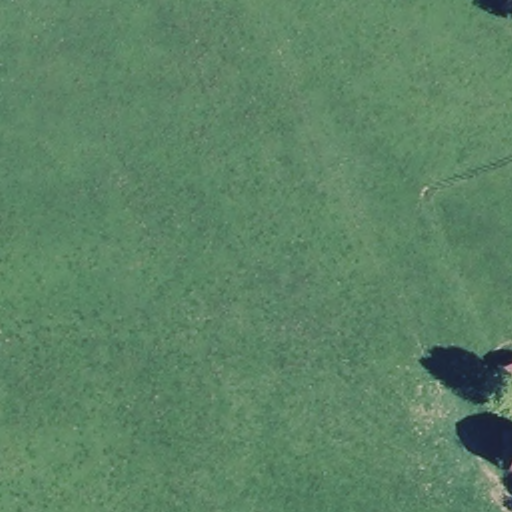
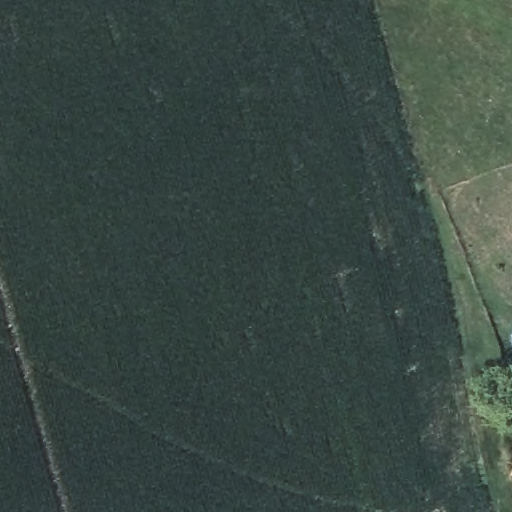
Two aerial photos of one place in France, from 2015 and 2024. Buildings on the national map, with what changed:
unchanged [(512,463),(512,472),(508,470),(512,463)]

